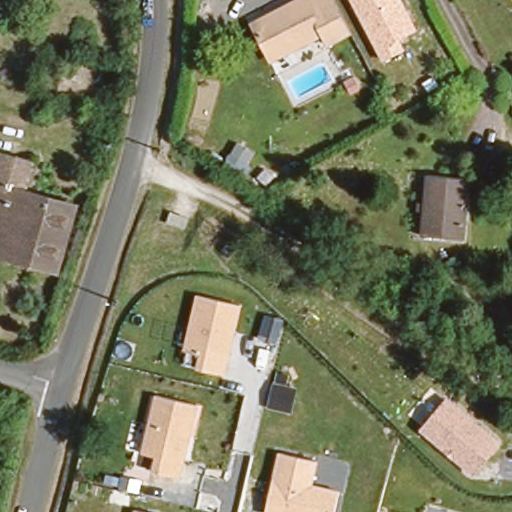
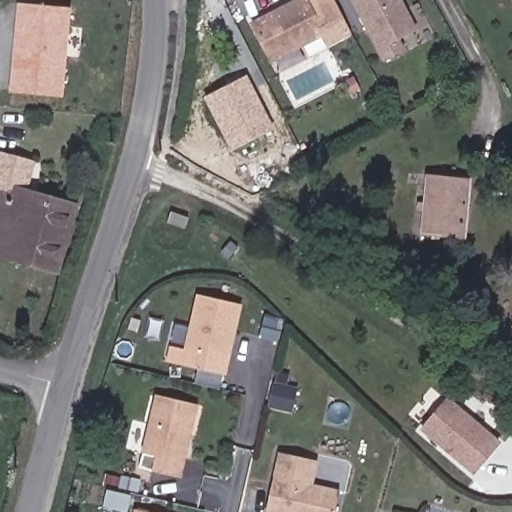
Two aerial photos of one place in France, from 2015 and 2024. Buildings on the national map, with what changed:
unchanged [(325,45),(319,32),(264,59),(248,28),(287,9),(284,4),(293,0),(329,0),(347,34),(325,45)]
unchanged [(417,30),(401,38),(405,50),(384,62),(350,0),(401,0),(417,30)]
new [(17,1),(71,6),(63,97),(9,92),(17,1)]
new [(231,151),(204,97),(247,74),(274,128),(231,151)]
unchanged [(10,167),(11,162),(30,165),(27,191),(81,203),(64,268),(34,262),(0,254),(0,166),(10,167)]
unchanged [(460,239),(416,232),(426,171),(469,176),(460,239)]
unchanged [(244,303),(228,375),(198,369),(201,353),(187,349),(197,293),(244,303)]
unchanged [(201,404),(183,477),(153,471),(156,458),(142,453),(156,394),(201,404)]
unchanged [(452,399),(500,442),(474,471),(424,427),(452,399)]
unchanged [(314,483),(341,490),(336,512),(266,512),(279,450),(319,459),(314,483)]
unchanged [(135,512),(136,509),(148,512),(135,512)]

